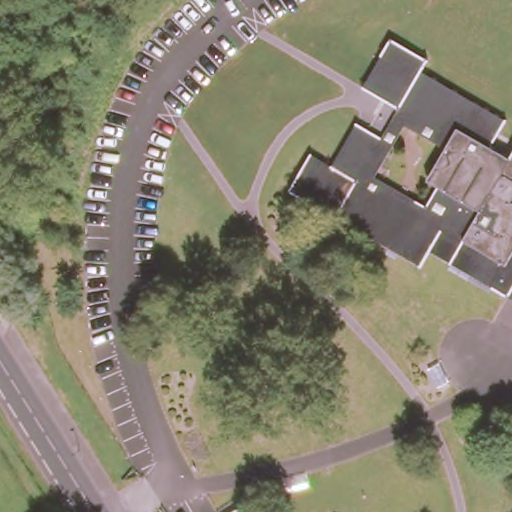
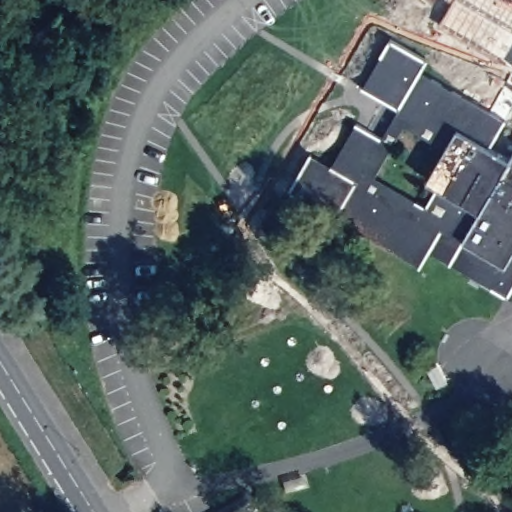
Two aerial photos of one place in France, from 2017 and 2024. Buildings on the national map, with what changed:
new [(454,0),(511,0),(512,1),(512,60),(442,22),(454,0)]
unchanged [(417,261),(285,186),(307,148),(330,161),(356,118),(382,132),(400,104),(362,82),(390,32),(428,54),(422,66),(505,114),(491,142),(510,152),(512,147),(512,296),(426,247),(417,261)]
new [(512,73),(512,93),(502,88),(512,73)]
unchanged [(260,512),(228,512),(252,499),(260,512)]

